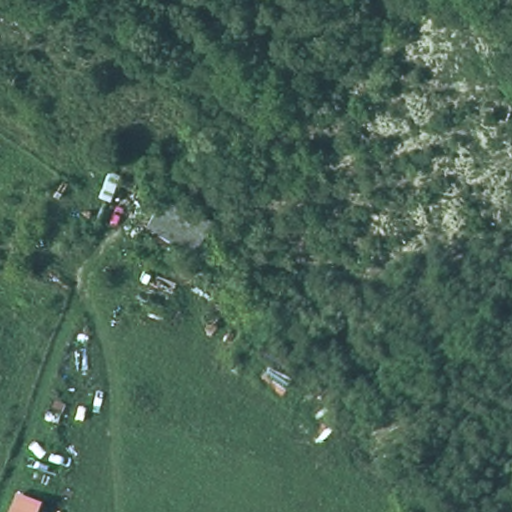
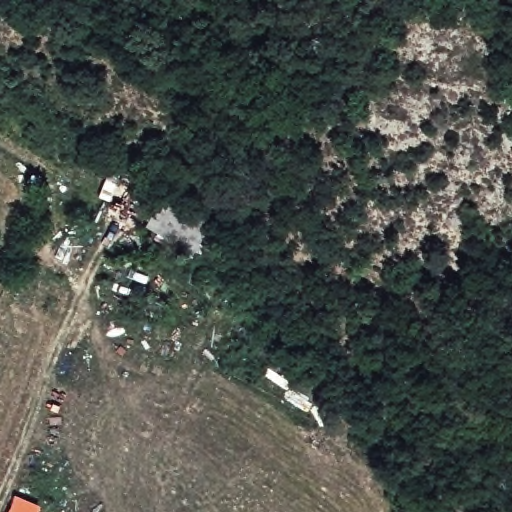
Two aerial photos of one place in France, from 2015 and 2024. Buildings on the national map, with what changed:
unchanged [(36,512),(9,512),(15,496),(38,505),(36,512)]

